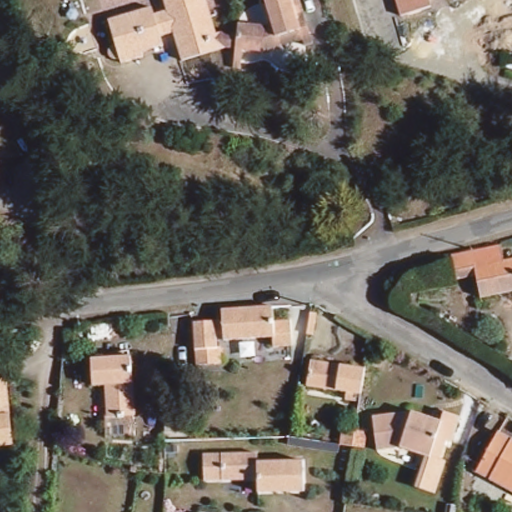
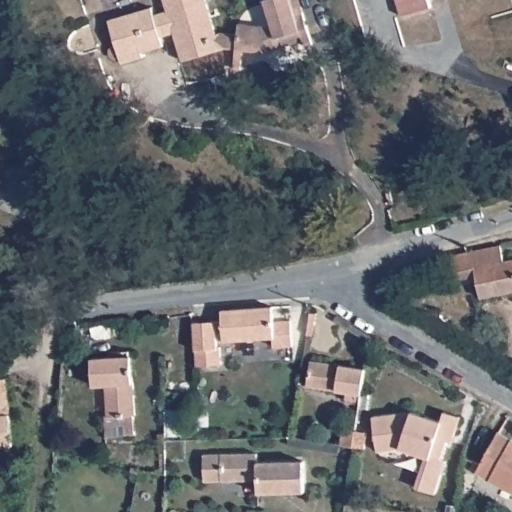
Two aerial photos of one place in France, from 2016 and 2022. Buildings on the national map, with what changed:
unchanged [(167,46),(147,52),(148,59),(125,65),(124,61),(121,61),(117,60),(116,59),(115,56),(115,53),(117,50),(119,49),(121,49),(112,22),(156,10),(158,20),(172,16),(167,0),(208,0),(221,40),(222,40),(227,52),(224,51),(185,62),(177,33),(164,36),(167,46)]
unchanged [(227,52),(222,40),(229,40),(240,41),(241,30),(265,32),(276,29),(267,5),(268,0),(301,0),(306,16),(315,49),(306,51),(304,45),(287,50),(268,55),(246,53),(245,71),(237,70),(237,52),(227,52)]
unchanged [(405,20),(399,0),(432,0),(436,11),(405,20)]
unchanged [(486,303),(481,280),(462,285),(456,261),(476,256),(504,250),(508,267),(512,267),(512,298),(486,303)]
unchanged [(199,367),(197,350),(195,325),(224,321),(223,311),(273,307),(275,323),(290,321),(292,347),(276,348),(276,336),(224,340),(219,340),(220,348),(221,365),(199,367)]
unchanged [(139,405),(136,405),(137,426),(115,427),(115,423),(107,423),(107,412),(110,412),(109,383),(97,383),(97,358),(137,356),(139,405)]
unchanged [(363,400),(362,410),(356,409),(357,400),(347,397),(349,390),(312,382),(317,357),(372,368),(363,400)]
unchanged [(12,385),(20,452),(0,455),(0,369),(2,386),(12,385)]
unchanged [(457,441),(452,440),(445,461),(435,493),(416,486),(425,455),(403,447),(383,451),(377,417),(415,410),(446,421),(449,411),(465,417),(457,441)]
unchanged [(351,448),(337,446),(341,427),(353,430),(351,448)]
unchanged [(481,476),(502,438),(512,443),(512,494),(481,476)]
unchanged [(256,456),(257,463),(302,463),(302,495),(257,495),(257,483),(202,485),(202,457),(256,456)]

